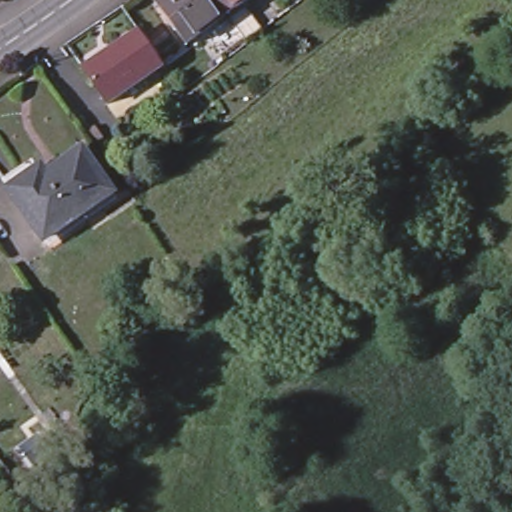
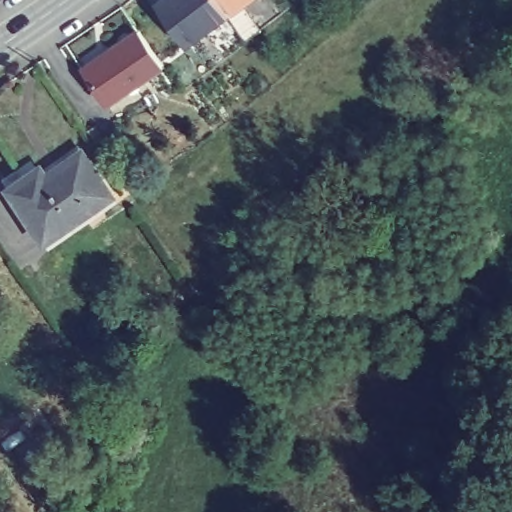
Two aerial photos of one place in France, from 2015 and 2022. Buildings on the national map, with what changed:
unchanged [(182,43),(153,1),(154,0),(218,0),(226,10),(182,43)]
unchanged [(218,0),(239,0),(226,10),(218,0)]
unchanged [(159,65),(104,106),(78,70),(106,50),(134,30),(159,65)]
unchanged [(46,241),(3,180),(19,169),(24,176),(39,166),(45,174),(82,149),(112,190),(77,215),(78,219),(46,241)]

